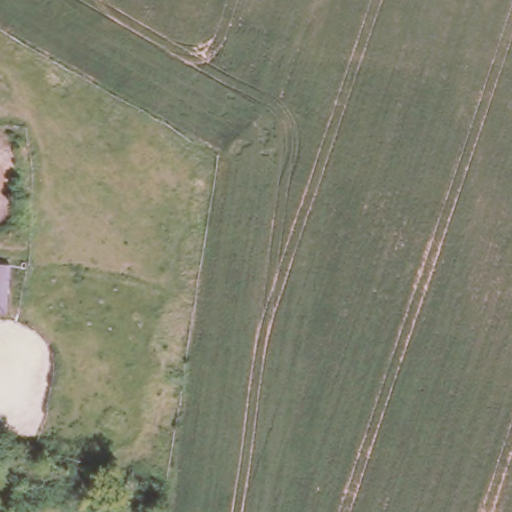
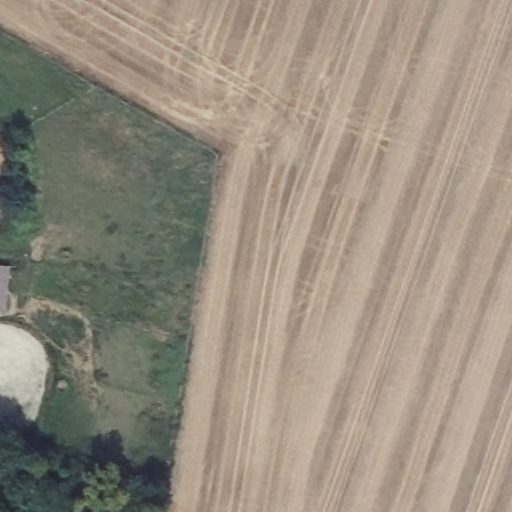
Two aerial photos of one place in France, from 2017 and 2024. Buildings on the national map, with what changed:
unchanged [(7,309),(0,308),(0,260),(12,261),(7,309)]

